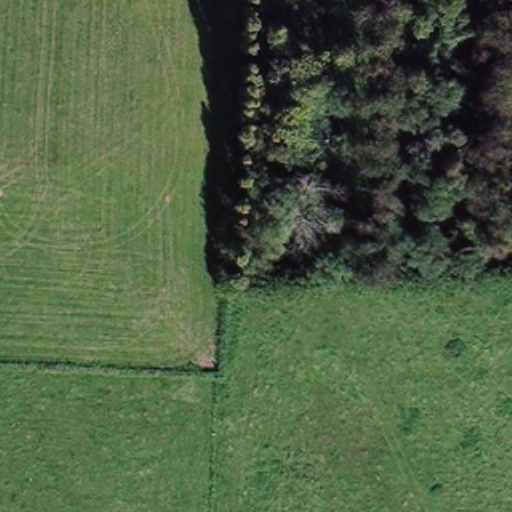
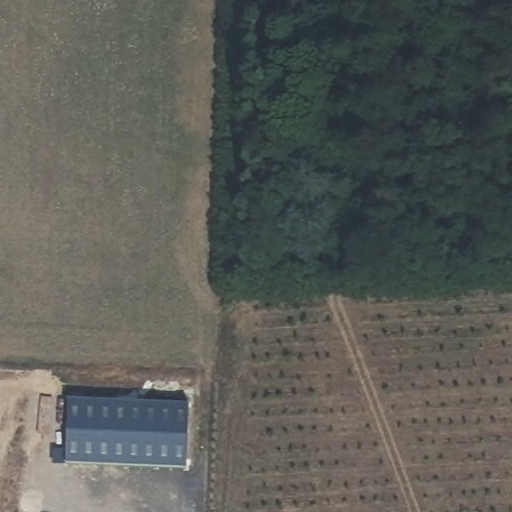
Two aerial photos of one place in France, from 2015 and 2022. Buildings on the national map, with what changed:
new [(75,395),(195,400),(192,465),(72,461),(75,395)]

